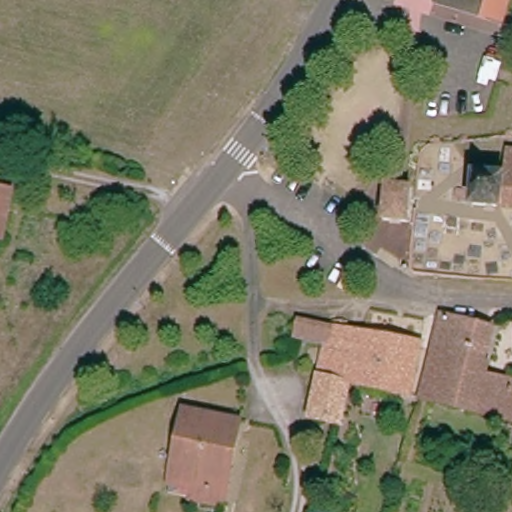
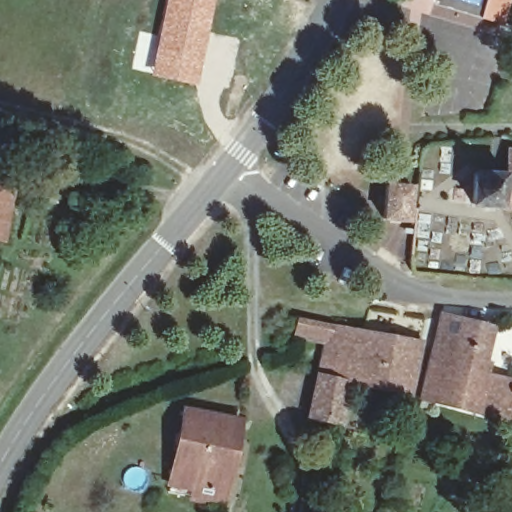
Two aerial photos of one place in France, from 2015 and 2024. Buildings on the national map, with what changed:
new [(214,0),(195,86),(151,75),(166,0),(214,0)]
unchanged [(440,12),(444,0),(490,0),(482,24),(440,12)]
unchanged [(485,174),(512,175),(512,209),(485,208),(485,174)]
unchanged [(382,214),(382,177),(408,177),(410,215),(382,214)]
unchanged [(10,192),(6,206),(0,226),(0,189),(10,192)]
unchanged [(481,372),(512,381),(512,418),(511,420),(503,418),(425,396),(447,315),(494,327),(481,372)]
unchanged [(326,342),(297,335),(303,318),(330,326),(363,334),(420,347),(409,397),(355,383),(347,386),(338,422),(308,415),(325,347),(326,342)]
unchanged [(169,476),(185,406),(239,422),(220,504),(190,495),(166,488),(169,476)]

